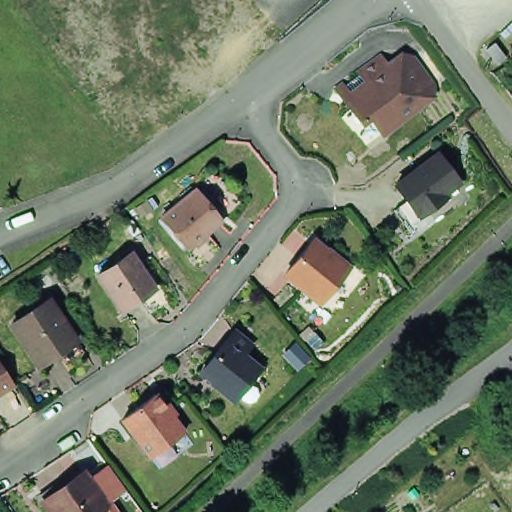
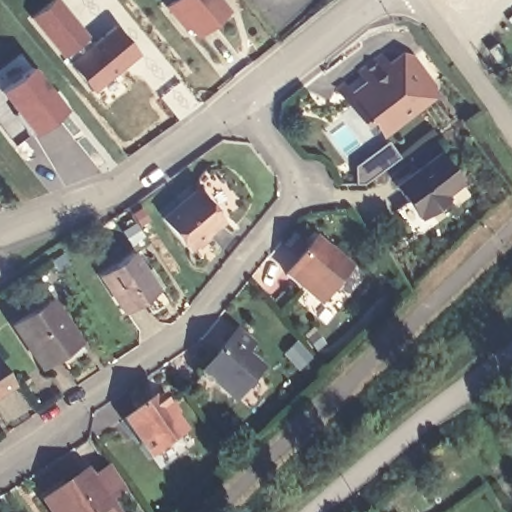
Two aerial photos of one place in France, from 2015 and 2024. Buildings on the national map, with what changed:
new [(32,16),(51,0),(64,0),(90,35),(66,56),(32,16)]
new [(172,0),(220,0),(229,10),(196,37),(188,27),(184,30),(164,7),(172,0)]
new [(93,91),(71,60),(115,22),(142,53),(93,91)]
unchanged [(496,43),(507,58),(499,64),(487,49),(496,43)]
unchanged [(364,122),(345,100),(367,82),(360,73),(378,58),(385,66),(399,55),(409,56),(432,83),(430,94),(385,132),(372,116),(364,122)]
new [(69,105),(35,132),(2,88),(34,62),(69,105)]
new [(355,184),(355,167),(368,157),(389,142),(400,158),(380,173),(366,183),(365,182),(364,183),(355,184)]
unchanged [(413,229),(395,205),(407,196),(395,181),(440,148),(462,177),(445,190),(449,194),(423,213),(420,209),(417,210),(425,220),(413,229)]
unchanged [(201,184),(227,216),(193,245),(167,213),(201,184)]
unchanged [(147,200),(155,210),(142,219),(135,209),(147,200)]
unchanged [(350,269),(322,303),(287,275),(315,240),(350,269)]
unchanged [(104,275),(137,253),(149,271),(145,273),(157,291),(127,311),(104,275)]
unchanged [(65,365),(59,354),(40,366),(12,325),(50,300),(78,341),(85,352),(65,365)]
unchanged [(316,334),(325,344),(317,351),(307,341),(316,334)]
unchanged [(235,337),(252,350),(244,360),(262,374),(248,390),(246,388),(234,404),(202,379),(235,337)]
unchanged [(15,384),(0,394),(0,362),(15,384)]
unchanged [(190,428),(157,453),(129,415),(162,390),(190,428)]
unchanged [(85,476),(106,506),(97,512),(54,512),(47,503),(85,476)]

